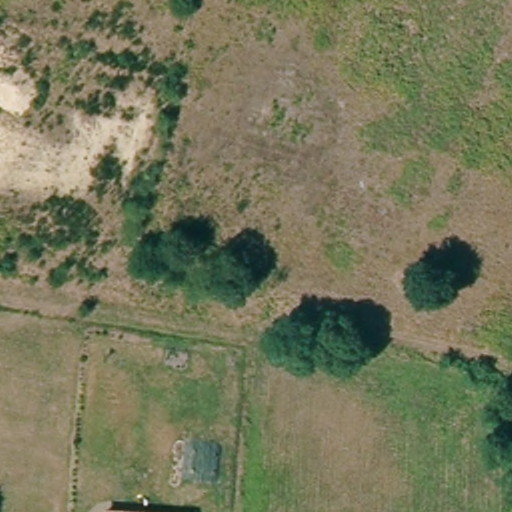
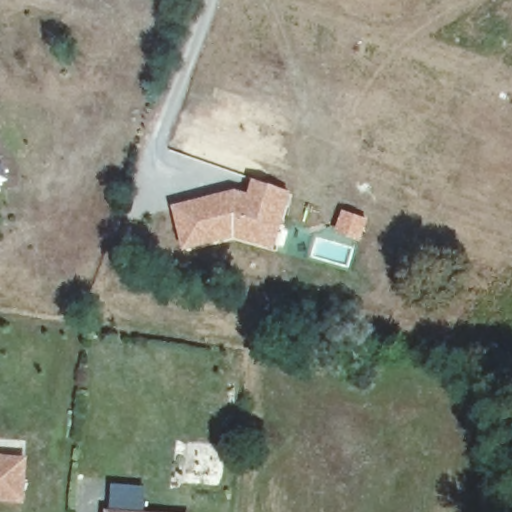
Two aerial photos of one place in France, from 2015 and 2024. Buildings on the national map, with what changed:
new [(235,189),(247,193),(250,179),(291,192),(275,248),(234,237),(184,249),(172,204),(235,189)]
new [(0,454),(28,455),(24,502),(0,500),(0,454)]

